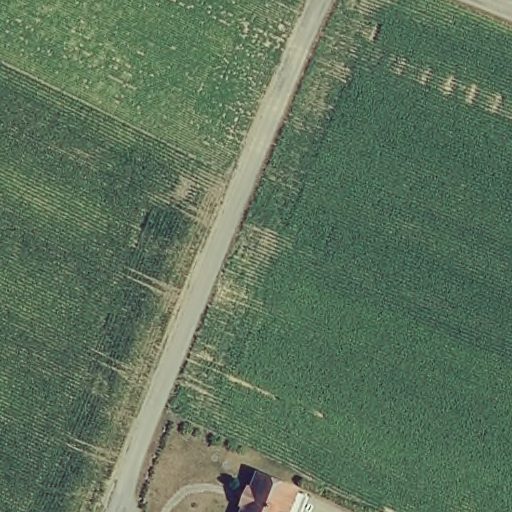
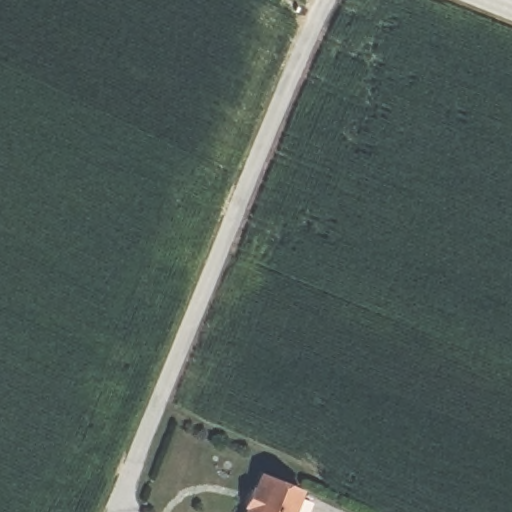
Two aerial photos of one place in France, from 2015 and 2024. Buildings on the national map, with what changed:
unchanged [(243,512),(245,507),(242,505),(248,490),(252,491),(260,471),(300,488),(298,492),(310,497),(303,512),(243,512)]

